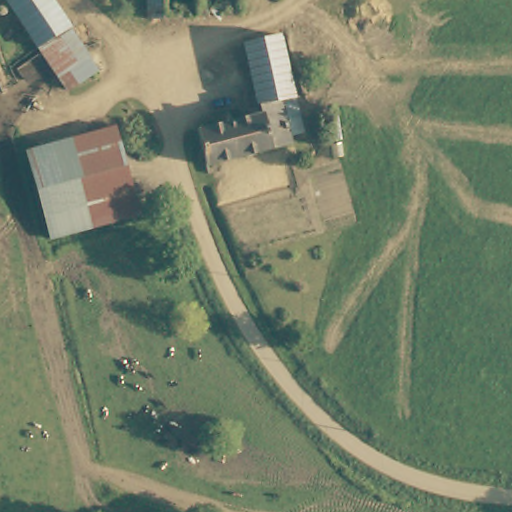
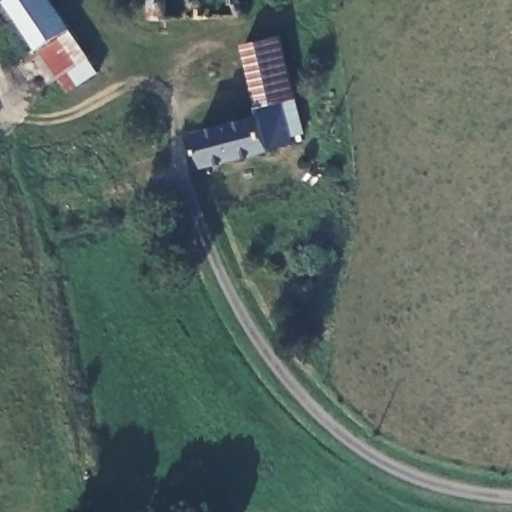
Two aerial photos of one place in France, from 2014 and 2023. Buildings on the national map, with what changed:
unchanged [(58,84),(55,78),(15,2),(21,0),(61,0),(98,74),(58,84)]
demolished [(170,12),(171,0),(261,0),(261,15),(170,12)]
unchanged [(290,103),(282,104),(286,146),(201,159),(196,127),(262,117),(253,40),(286,37),(294,103),(290,103)]
demolished [(142,216),(53,245),(26,152),(118,127),(142,216)]

